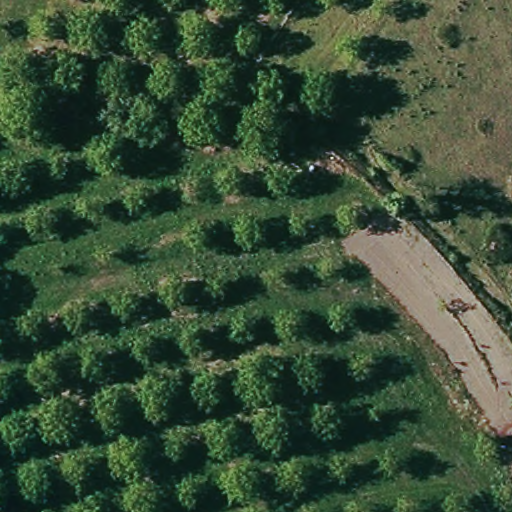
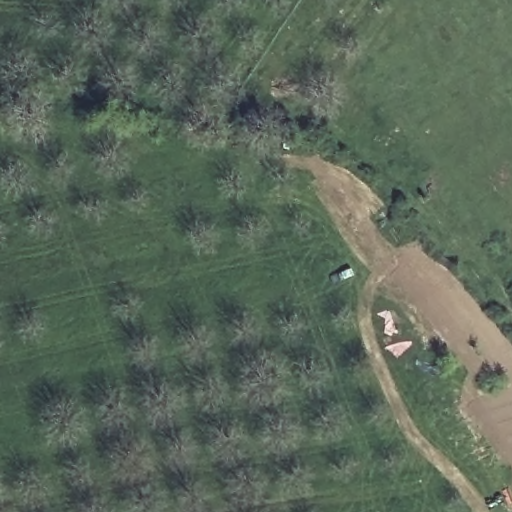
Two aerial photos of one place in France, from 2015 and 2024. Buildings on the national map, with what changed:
[]

